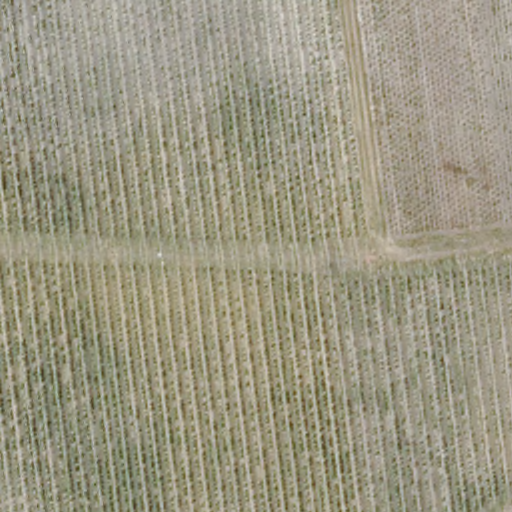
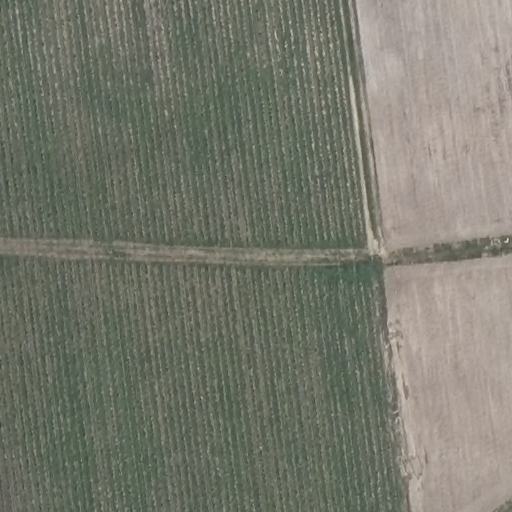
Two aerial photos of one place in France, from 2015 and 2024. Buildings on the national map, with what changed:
[]

